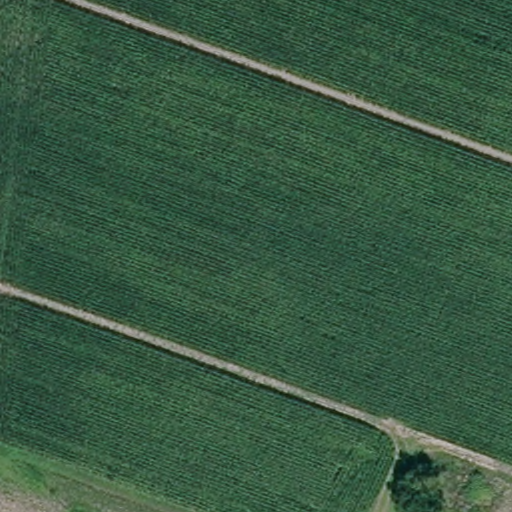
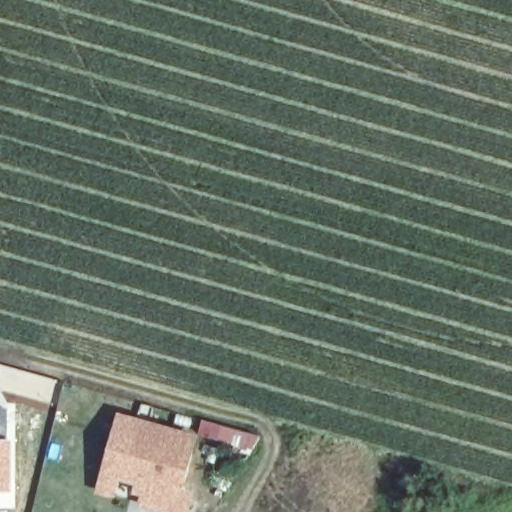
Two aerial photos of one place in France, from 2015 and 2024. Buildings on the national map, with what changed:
new [(11,405),(10,437),(0,437),(0,405),(11,405)]
new [(141,406),(258,438),(250,451),(196,436),(181,487),(195,492),(189,512),(156,512),(135,507),(139,497),(129,495),(133,485),(117,481),(112,497),(94,492),(117,412),(138,418),(141,406)]
new [(10,437),(15,508),(0,508),(0,437),(10,437)]

